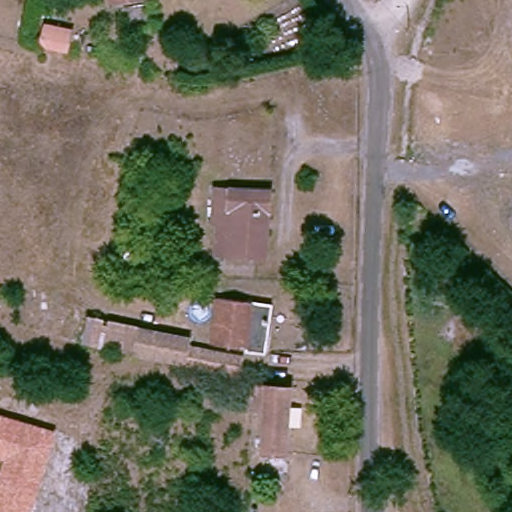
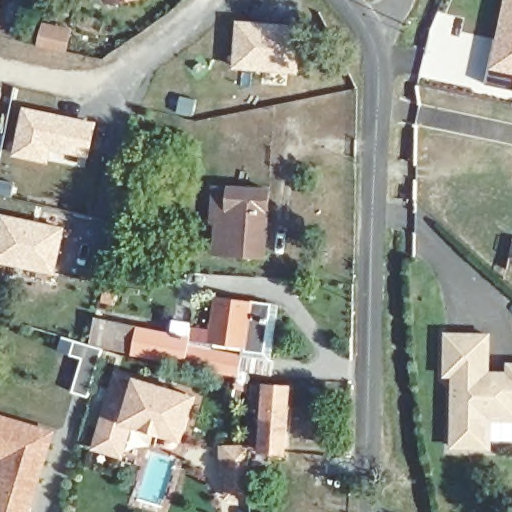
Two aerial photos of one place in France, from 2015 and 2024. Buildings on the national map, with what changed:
unchanged [(153,1),(118,8),(117,0),(152,0),(153,1)]
new [(486,83),(489,69),(504,0),(512,0),(512,89),(486,83)]
unchanged [(46,42),(26,37),(21,36),(28,13),(34,13),(53,18),(46,42)]
new [(235,19),(302,25),(298,74),(231,68),(235,19)]
new [(22,105),(97,121),(89,159),(53,152),(49,163),(11,154),(22,105)]
unchanged [(264,253),(220,249),(224,220),(210,218),(215,184),(271,190),(264,253)]
new [(55,275),(0,264),(0,212),(65,225),(55,275)]
unchanged [(248,353),(244,348),(209,344),(213,303),(261,308),(272,309),(269,322),(266,355),(248,353)]
unchanged [(133,352),(93,343),(99,316),(138,325),(133,352)]
unchanged [(240,360),(235,378),(189,366),(133,352),(138,325),(189,335),(189,347),(240,360)]
new [(451,448),(451,378),(444,377),(444,332),(490,333),(491,371),(506,372),(506,362),(512,363),(512,422),(491,421),(492,449),(451,448)]
new [(91,449),(116,371),(134,377),(195,395),(183,441),(131,426),(123,458),(91,449)]
unchanged [(288,458),(265,456),(268,412),(256,410),(257,386),(270,386),(292,389),(288,458)]
unchanged [(0,415),(57,432),(30,512),(3,512),(0,511),(0,471),(4,459),(0,458),(0,415)]
new [(225,499),(224,471),(221,471),(219,445),(249,444),(250,498),(225,499)]

